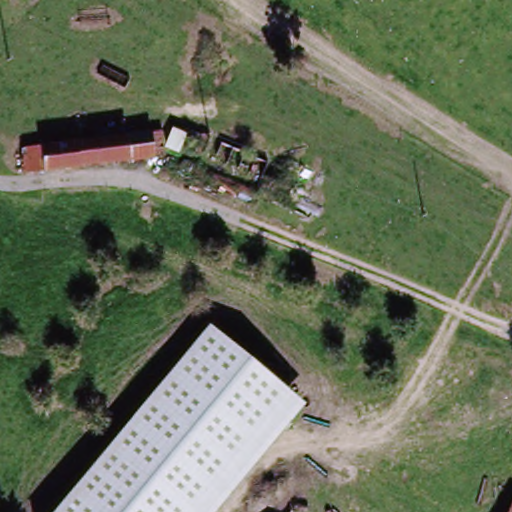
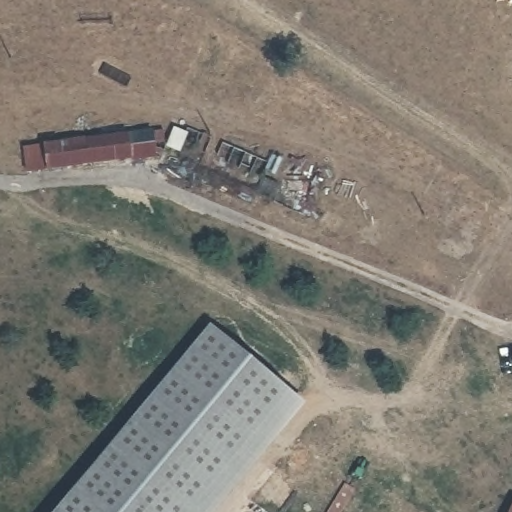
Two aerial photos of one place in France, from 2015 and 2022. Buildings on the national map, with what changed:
unchanged [(162,136),(167,125),(177,130),(171,141),(162,136)]
unchanged [(28,145),(55,144),(160,132),(161,158),(56,169),(29,171),(28,145)]
unchanged [(306,404),(217,512),(53,512),(211,326),(306,404)]
unchanged [(511,506),(512,506),(512,512),(509,512),(511,506)]

